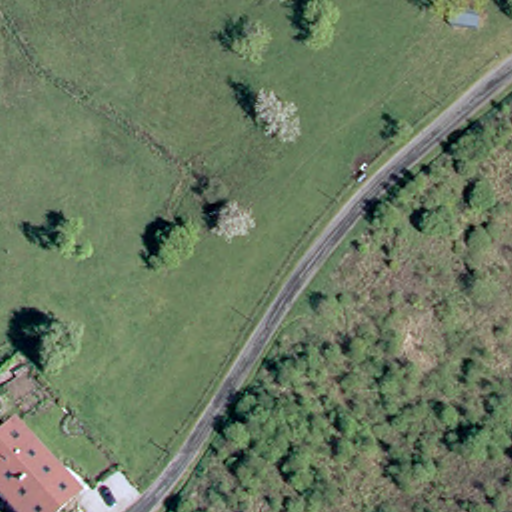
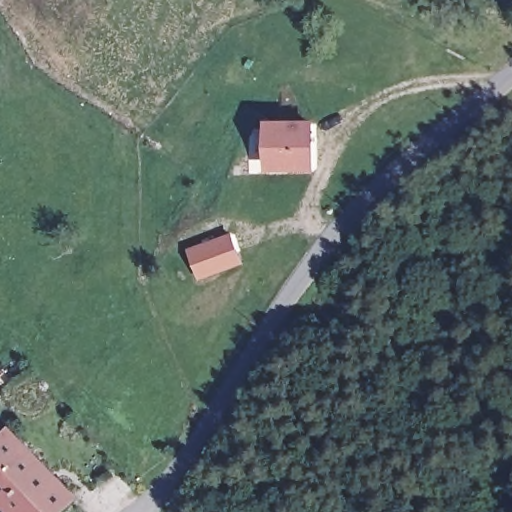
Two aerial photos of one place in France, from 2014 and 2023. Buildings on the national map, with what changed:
new [(315,119),(315,169),(266,170),(266,119),(315,119)]
new [(232,231),(245,263),(200,280),(189,248),(232,231)]
unchanged [(92,504),(80,512),(9,512),(0,501),(0,431),(12,421),(92,504)]

